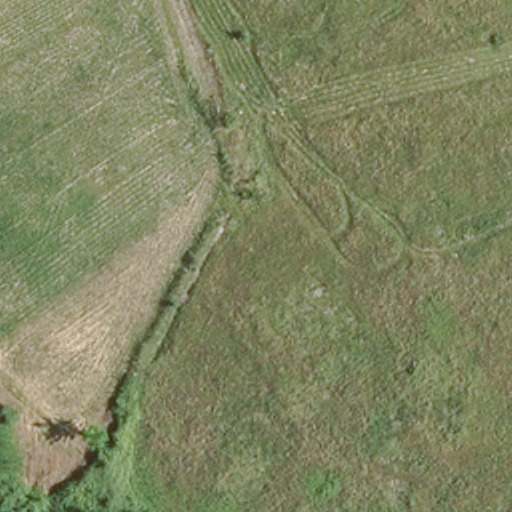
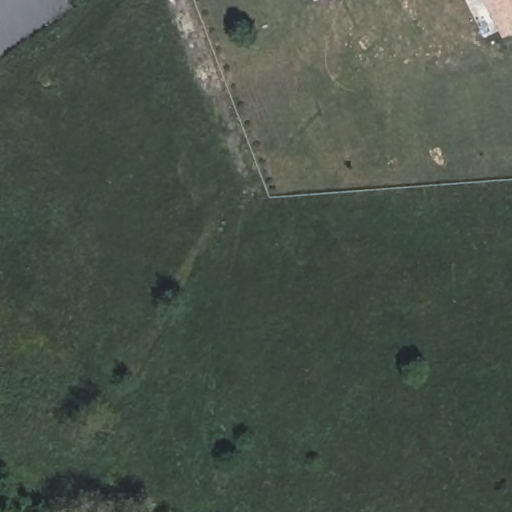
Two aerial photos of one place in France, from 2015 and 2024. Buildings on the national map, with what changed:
new [(505,36),(488,0),(512,0),(512,33),(505,36)]

